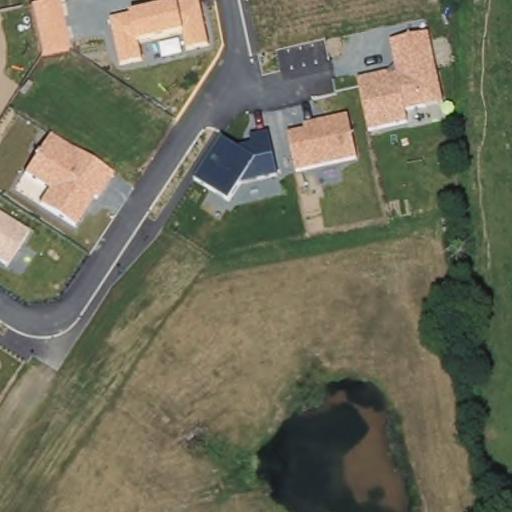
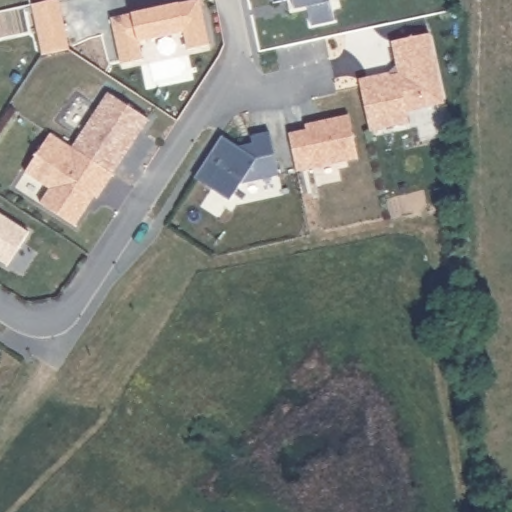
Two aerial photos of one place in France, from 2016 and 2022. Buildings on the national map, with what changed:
unchanged [(31,5),(56,0),(58,0),(69,50),(42,56),(31,5)]
unchanged [(184,32),(136,42),(142,61),(120,64),(111,19),(131,13),(179,4),(199,0),(208,46),(188,51),(184,32)]
new [(272,1),(272,0),(277,0),(272,1)]
new [(304,6),(293,9),(291,0),(325,0),(325,3),(329,2),(334,21),(310,26),(304,6)]
unchanged [(446,102),(406,111),(409,123),(372,131),(359,79),(397,69),(393,42),(431,34),(446,102)]
new [(70,147),(107,93),(148,120),(113,175),(70,147)]
unchanged [(289,133),(305,129),(304,126),(349,116),(357,160),(297,173),(289,133)]
unchanged [(279,177),(239,186),(232,198),(195,178),(221,135),(239,145),(254,142),(253,134),(269,130),(279,177)]
unchanged [(39,203),(50,187),(26,172),(50,134),(113,175),(98,198),(94,196),(75,226),(39,203)]
unchanged [(0,213),(29,231),(7,265),(0,261),(0,213)]

